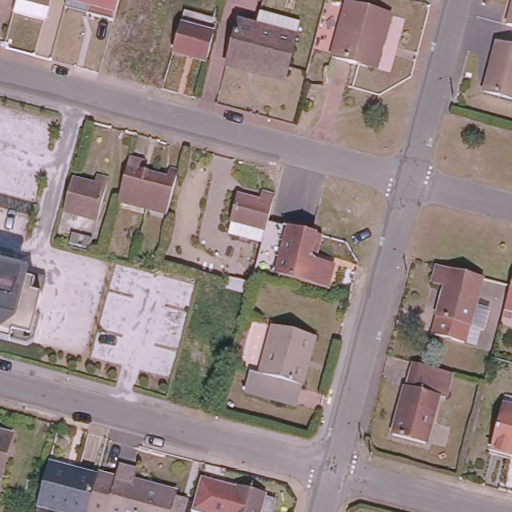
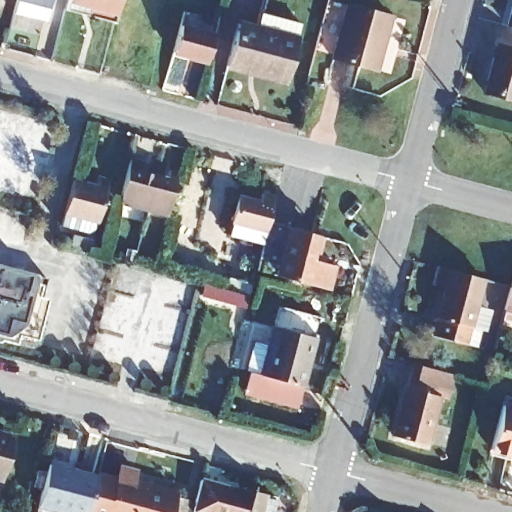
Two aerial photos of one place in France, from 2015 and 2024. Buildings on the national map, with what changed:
unchanged [(42,0),(51,0),(50,2),(42,0)]
unchanged [(90,7),(68,1),(68,0),(119,0),(115,14),(90,7)]
unchanged [(377,64),(334,52),(348,0),(353,0),(392,11),(377,64)]
unchanged [(508,0),(512,0),(512,22),(503,20),(508,0)]
unchanged [(173,46),(181,18),(185,5),(219,14),(215,27),(208,56),(173,46)]
unchanged [(282,81),(246,72),(245,76),(223,70),(235,26),(252,31),(256,16),(265,19),(296,27),(282,81)]
unchanged [(512,94),(485,87),(498,37),(512,41),(512,94)]
unchanged [(148,204),(119,196),(127,165),(130,152),(145,156),(142,166),(157,170),(168,172),(171,163),(180,165),(168,209),(148,204)]
unchanged [(96,179),(98,171),(110,174),(99,214),(65,206),(71,185),(74,174),(96,179)]
unchanged [(230,229),(233,217),(240,192),(260,197),(262,187),(276,191),(270,216),(267,226),(264,238),(230,229)]
unchanged [(311,253),(335,260),(329,283),(281,271),(273,268),(285,220),(293,222),(317,228),(311,253)]
unchanged [(93,234),(90,245),(71,239),(74,229),(93,234)]
unchanged [(15,326),(14,328),(0,325),(0,258),(48,271),(32,331),(15,326)]
unchanged [(470,341),(460,337),(430,330),(433,313),(433,312),(440,282),(428,278),(433,261),(478,272),(465,321),(465,322),(475,325),(470,341)]
unchanged [(508,275),(512,263),(512,302),(502,300),(508,275)]
unchanged [(250,288),(227,282),(230,275),(238,277),(239,275),(253,278),(250,288)]
unchanged [(512,302),(512,310),(510,310),(512,302)]
unchanged [(317,332),(304,381),(262,370),(275,321),(317,332)]
unchanged [(452,368),(445,393),(438,391),(426,439),(393,431),(406,382),(408,383),(414,357),(452,368)]
unchanged [(262,370),(304,381),(298,402),(245,388),(251,367),(262,370)]
unchanged [(502,396),(512,398),(512,445),(490,439),(502,396)]
unchanged [(12,432),(2,472),(0,472),(0,428),(12,432)]
unchanged [(93,472),(83,508),(82,512),(76,512),(33,501),(45,459),(93,472)]
unchanged [(83,508),(93,472),(94,468),(113,473),(116,462),(132,466),(128,477),(155,485),(155,482),(172,486),(170,491),(178,493),(173,512),(82,512),(83,508)]
unchanged [(195,477),(212,482),(205,511),(187,506),(195,477)]
unchanged [(260,490),(254,510),(261,512),(227,512),(229,505),(217,501),(221,482),(235,485),(235,482),(260,490)]

